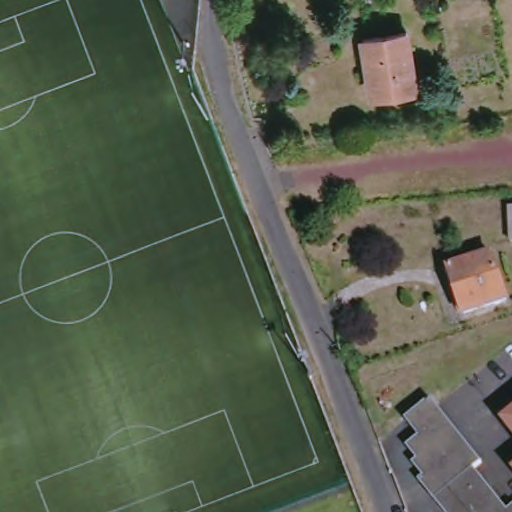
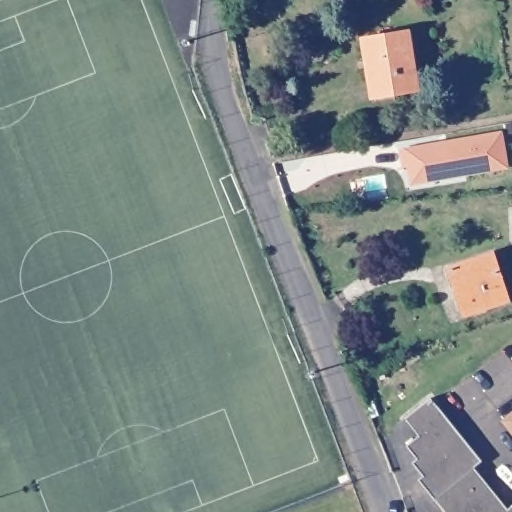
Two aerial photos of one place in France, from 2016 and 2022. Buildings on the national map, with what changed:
unchanged [(398,36),(408,90),(373,96),(367,64),(361,65),(357,43),(398,36)]
new [(405,166),(401,148),(501,131),(508,166),(430,179),(412,182),(410,165),(427,161),(405,166)]
unchanged [(512,203),(512,233),(508,233),(507,203),(512,203)]
unchanged [(448,271),(488,257),(502,301),(463,315),(457,299),(450,301),(441,273),(448,271)]
unchanged [(417,482),(421,479),(411,466),(415,462),(405,449),(416,439),(409,429),(405,425),(402,422),(427,401),(430,405),(479,464),(470,471),(505,512),(512,506),(512,512),(441,512),(417,482)]
unchanged [(501,424),(512,415),(512,438),(501,424)]

